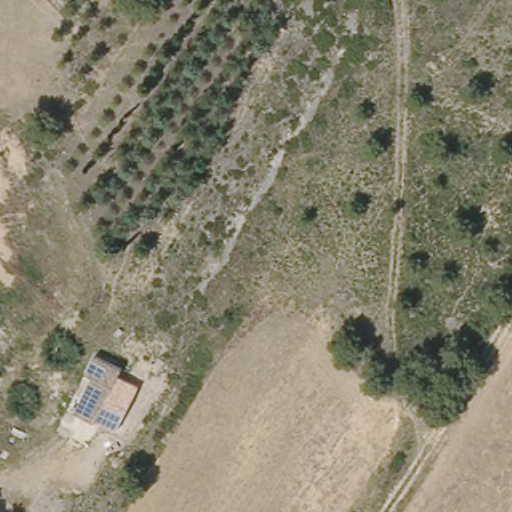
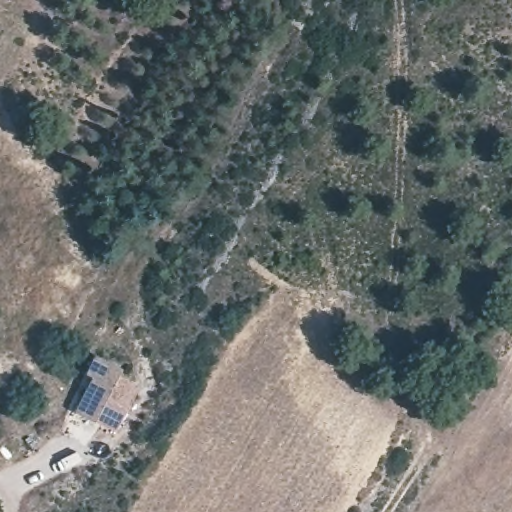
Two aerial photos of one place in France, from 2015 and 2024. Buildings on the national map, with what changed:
unchanged [(94,423),(74,413),(92,377),(85,374),(95,355),(122,369),(94,423)]

